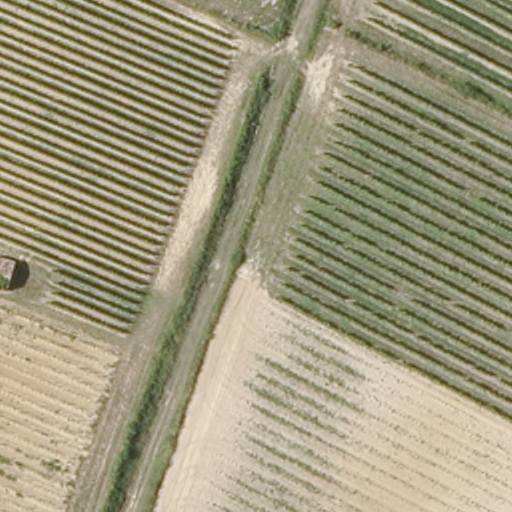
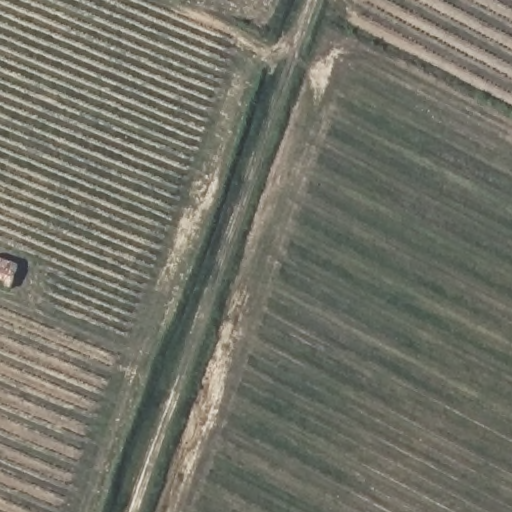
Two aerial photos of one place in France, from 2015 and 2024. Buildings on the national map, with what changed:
unchanged [(12,263),(5,286),(0,284),(0,259),(12,263)]

